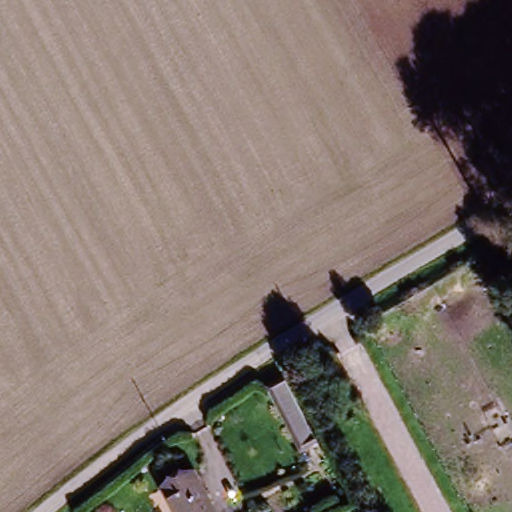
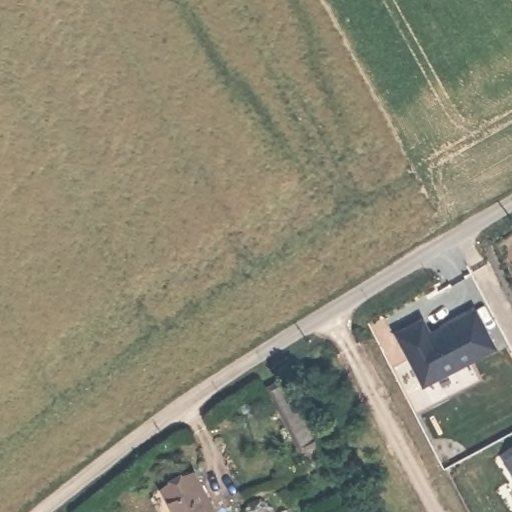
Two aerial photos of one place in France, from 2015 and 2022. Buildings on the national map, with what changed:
new [(394,333),(424,317),(432,331),(476,308),(497,349),(424,387),(394,333)]
new [(504,462),(512,456),(512,474),(504,462)]
unchanged [(172,512),(159,493),(190,474),(216,512),(172,512)]

